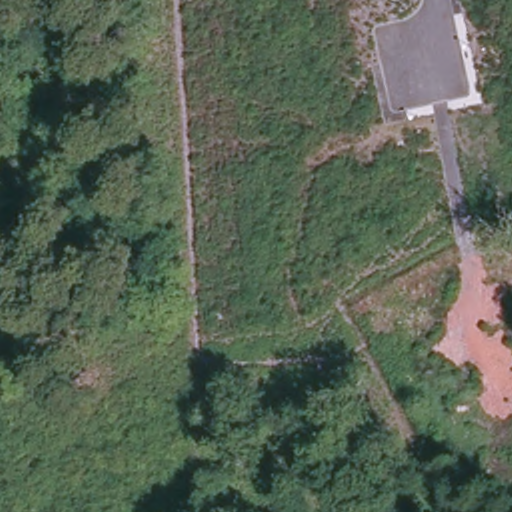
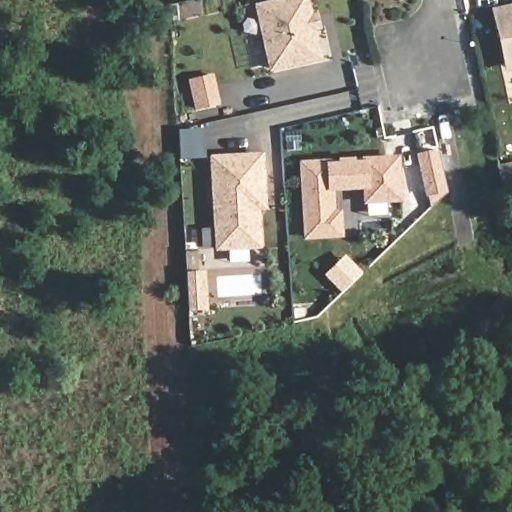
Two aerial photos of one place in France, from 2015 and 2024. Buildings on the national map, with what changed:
new [(258,6),(284,0),(307,0),(319,58),(272,68),(258,6)]
new [(505,64),(494,14),(512,10),(512,62),(505,64)]
new [(263,249),(215,252),(209,154),(264,150),(268,209),(260,210),(263,249)]
new [(433,150),(441,189),(422,194),(413,154),(433,150)]
new [(367,202),(366,187),(332,188),(333,213),(340,213),(342,235),(305,237),(303,163),(387,159),(387,169),(399,169),(401,199),(367,202)]
new [(209,273),(210,307),(194,308),(192,274),(209,273)]

